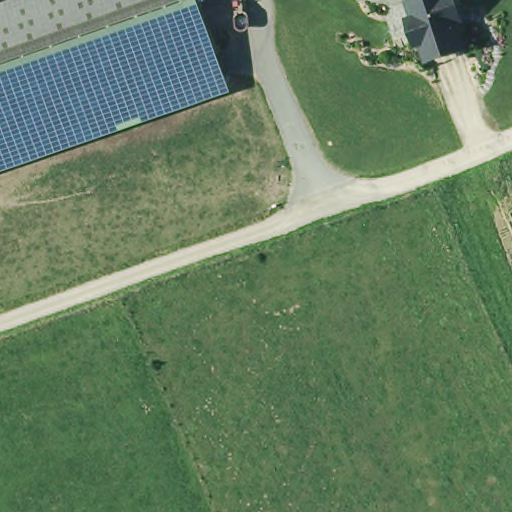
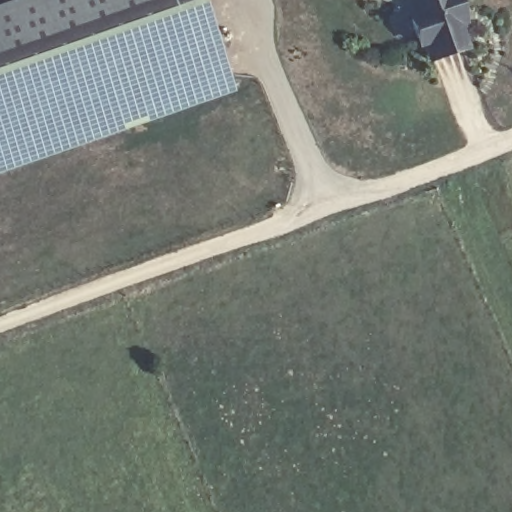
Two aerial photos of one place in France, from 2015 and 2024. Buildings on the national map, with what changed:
unchanged [(24,0),(200,0),(228,79),(0,157),(0,8),(24,0)]
unchanged [(410,0),(459,0),(467,25),(462,28),(469,51),(428,65),(423,49),(418,51),(408,19),(413,18),(408,1),(410,0)]

